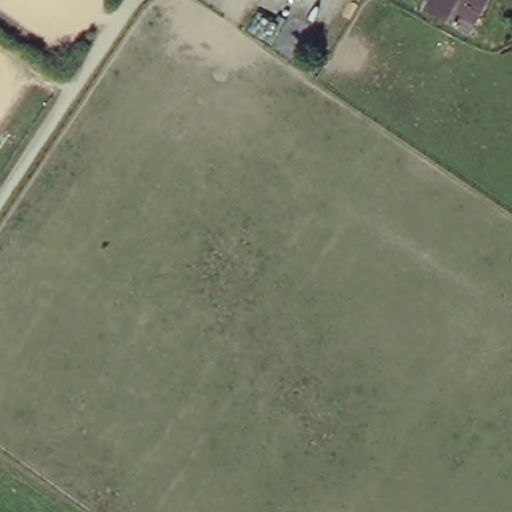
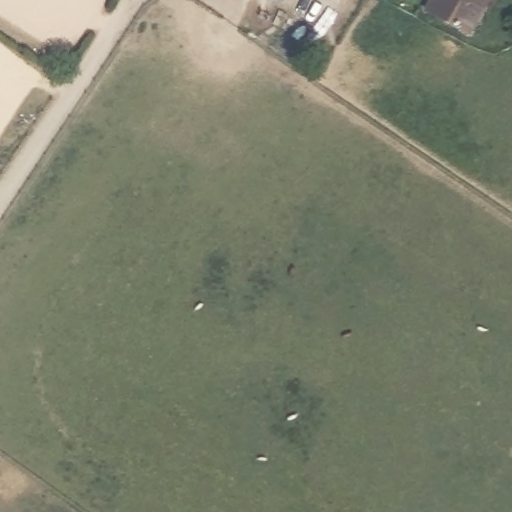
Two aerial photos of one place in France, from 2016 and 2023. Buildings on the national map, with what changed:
unchanged [(417,9),(423,0),(486,0),(482,7),(465,37),(452,30),(417,9)]

